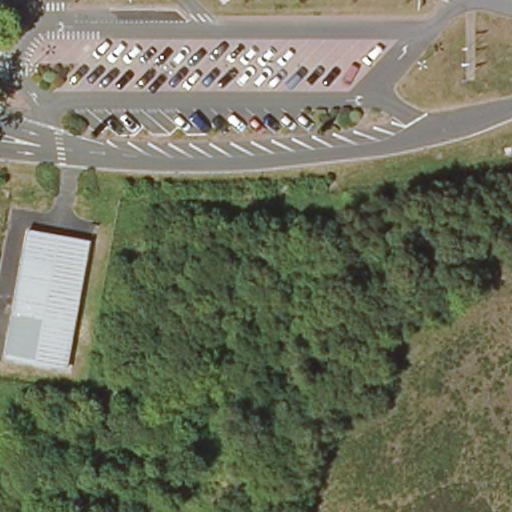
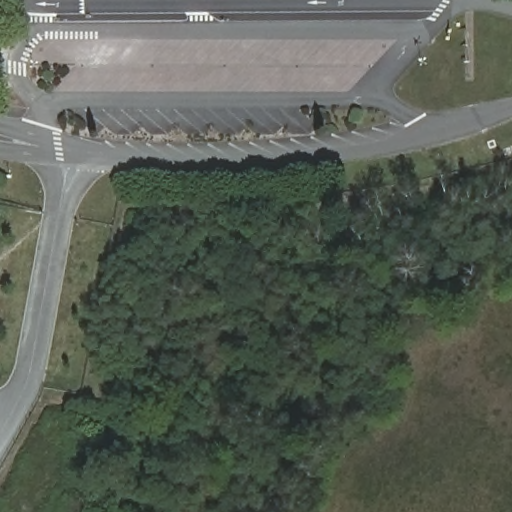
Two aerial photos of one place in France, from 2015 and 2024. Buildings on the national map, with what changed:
demolished [(95,235),(74,362),(9,351),(30,224),(95,235)]

